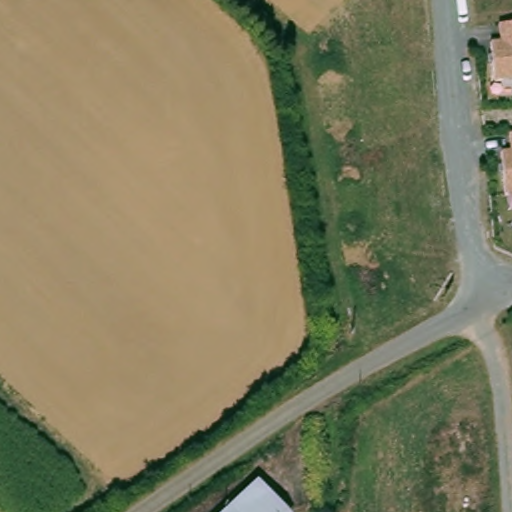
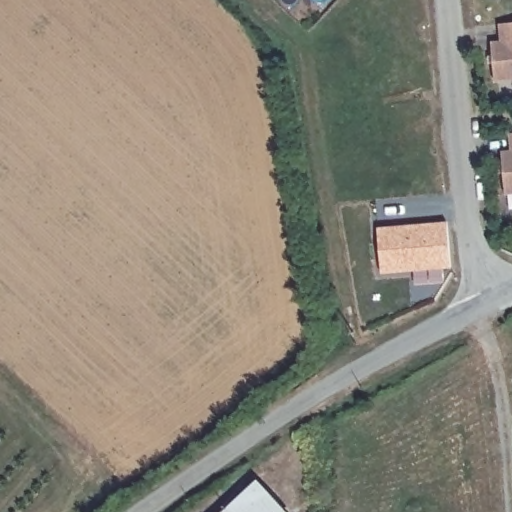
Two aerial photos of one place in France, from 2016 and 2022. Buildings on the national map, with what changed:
unchanged [(490,43),(499,43),(497,25),(512,24),(512,80),(493,82),(490,43)]
unchanged [(500,152),(509,151),(508,136),(512,135),(512,194),(504,195),(500,152)]
new [(376,228),(446,222),(449,269),(380,275),(376,228)]
unchanged [(291,506),(285,512),(227,512),(264,478),(291,506)]

